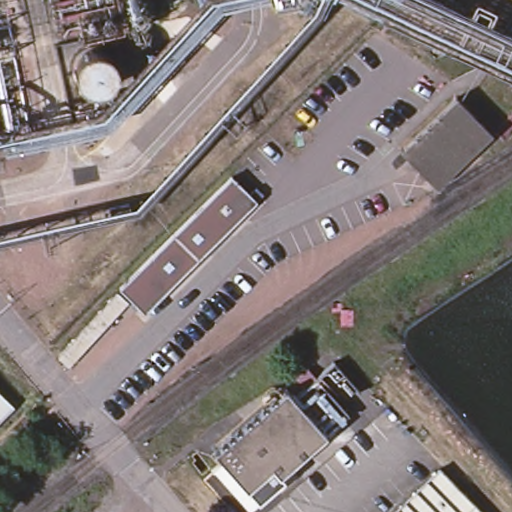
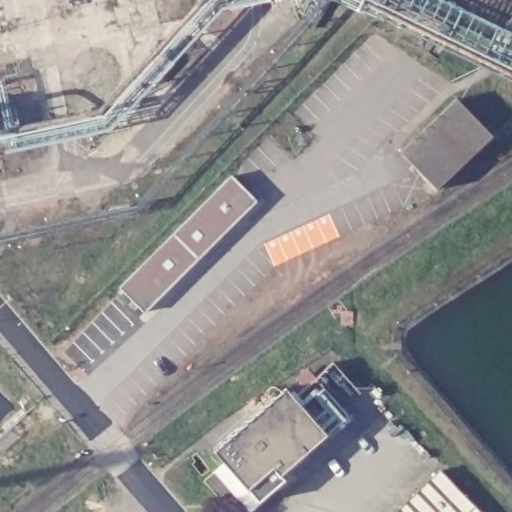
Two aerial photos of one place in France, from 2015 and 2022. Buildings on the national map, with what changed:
unchanged [(0,49),(0,0),(10,0),(19,47),(0,49)]
unchanged [(55,0),(113,0),(56,7),(55,0)]
unchanged [(401,151),(457,97),(494,136),(489,141),(438,189),(404,154),(401,151)]
unchanged [(144,311),(132,300),(72,370),(54,356),(115,289),(229,171),(259,197),(144,311)]
unchanged [(219,449),(285,388),(326,438),(281,478),(274,470),(247,487),(219,449)]
unchanged [(0,424),(0,408),(8,415),(0,424)]
unchanged [(439,468),(484,512),(394,512),(439,468)]

